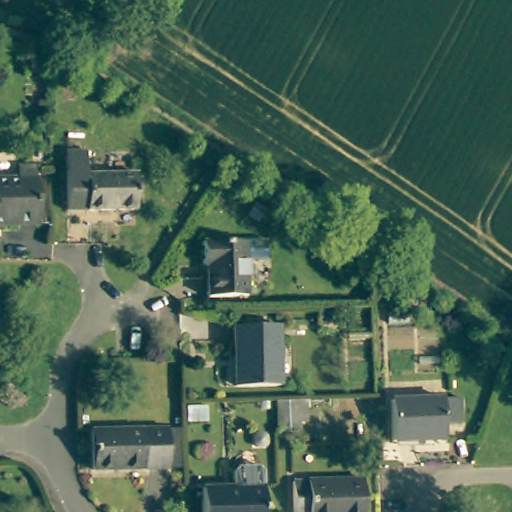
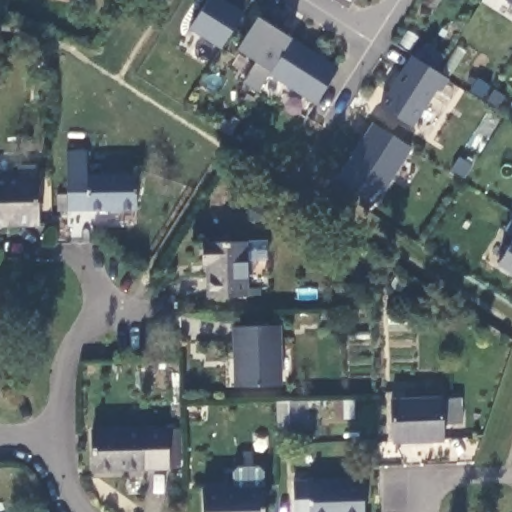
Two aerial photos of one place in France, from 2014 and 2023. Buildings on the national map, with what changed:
new [(220,48),(187,29),(205,0),(222,0),(242,13),(220,48)]
new [(504,0),(512,0),(512,5),(504,1),(504,0)]
new [(316,103),(270,75),(257,93),(242,83),(255,63),(236,51),(258,16),(293,39),(339,68),(316,103)]
new [(438,72),(450,80),(443,93),(435,90),(415,126),(381,108),(414,56),(425,64),(431,47),(444,55),(438,72)]
new [(380,202),(338,179),(371,124),(415,149),(380,202)]
unchanged [(130,211),(61,211),(62,151),(83,151),(83,174),(130,175),(130,211)]
unchanged [(0,224),(0,180),(14,180),(15,167),(36,168),(35,179),(36,225),(0,224)]
new [(512,216),(512,232),(505,227),(512,216)]
new [(512,239),(512,273),(496,264),(512,239)]
unchanged [(240,243),(240,298),(202,298),(204,266),(198,265),(198,243),(240,243)]
unchanged [(276,330),(277,389),(234,390),(233,330),(276,330)]
unchanged [(462,398),(461,423),(445,423),(444,441),(392,441),(392,399),(445,398),(462,398)]
unchanged [(301,408),(301,439),(280,439),(278,408),(301,408)]
unchanged [(165,431),(165,470),(90,471),(89,431),(165,431)]
unchanged [(231,495),(231,479),(236,475),(256,474),(261,479),(261,512),(200,512),(200,495),(231,495)]
unchanged [(363,512),(292,512),(291,484),(362,484),(363,512)]

